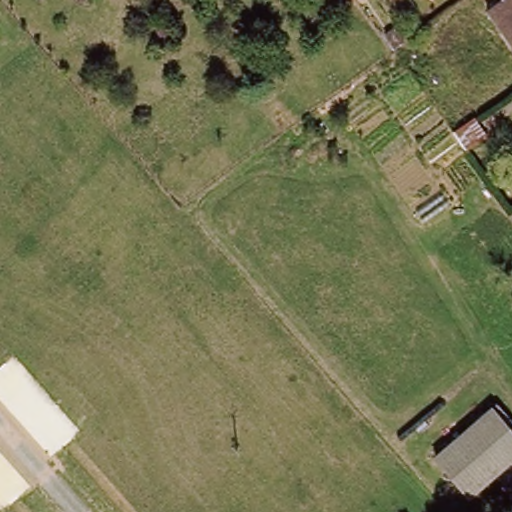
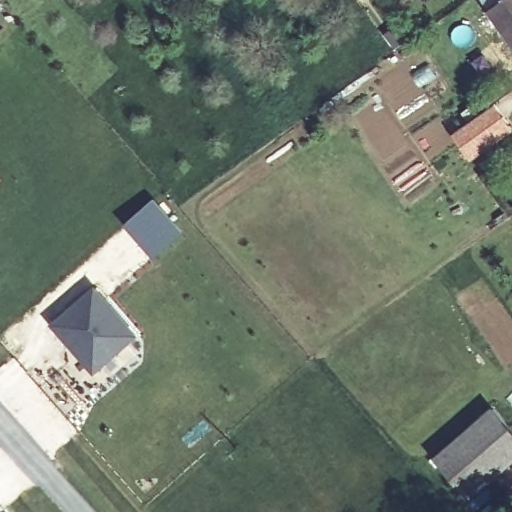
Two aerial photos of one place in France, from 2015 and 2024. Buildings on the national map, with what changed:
unchanged [(507,0),(512,0),(512,50),(487,16),(507,0)]
new [(51,323),(95,286),(138,336),(94,372),(51,323)]
unchanged [(512,437),(512,454),(464,495),(433,459),(490,411),(512,437)]

